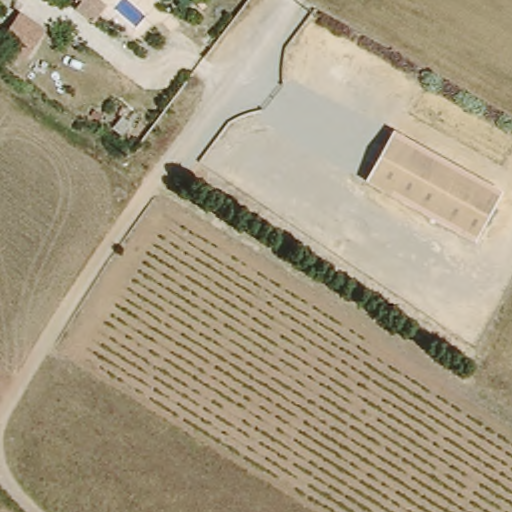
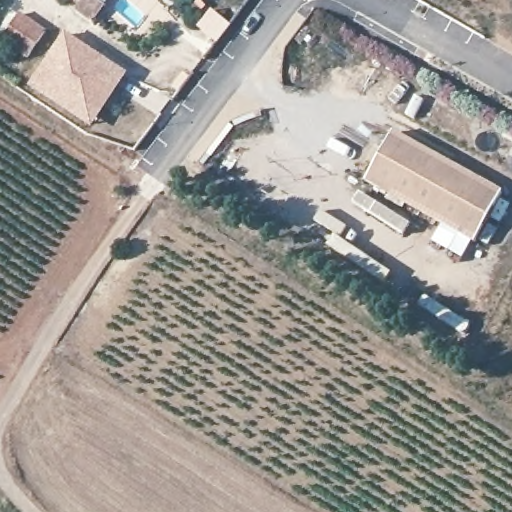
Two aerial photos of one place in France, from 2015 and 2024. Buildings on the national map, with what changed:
unchanged [(70,13),(77,0),(93,0),(102,6),(90,27),(70,13)]
unchanged [(0,45),(17,16),(44,34),(25,62),(0,46),(0,45)]
new [(93,130),(30,87),(67,33),(127,74),(93,130)]
unchanged [(361,182),(388,133),(497,194),(470,243),(361,182)]
new [(512,153),(512,158),(510,157),(512,153)]

